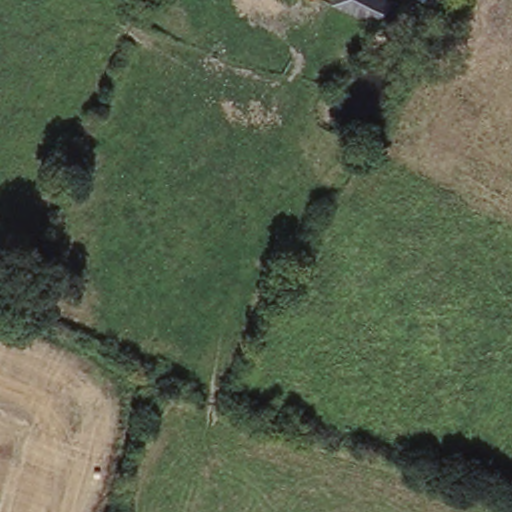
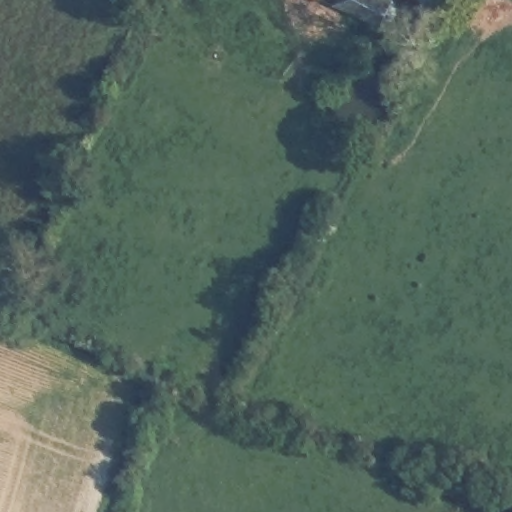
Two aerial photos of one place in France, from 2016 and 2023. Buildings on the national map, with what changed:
unchanged [(339,0),(399,0),(385,28),(336,6),(339,0)]
unchanged [(427,0),(441,0),(438,5),(427,0)]

